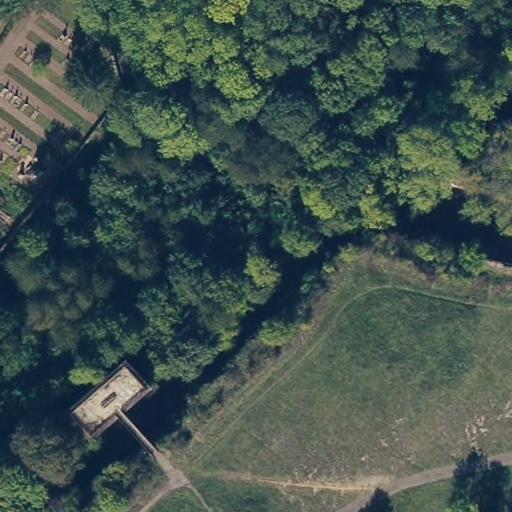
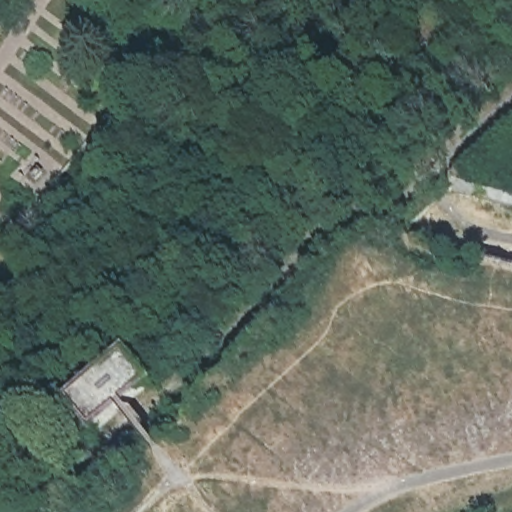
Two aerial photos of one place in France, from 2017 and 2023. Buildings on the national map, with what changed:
unchanged [(67,404),(126,354),(149,381),(90,432),(86,428),(67,404)]
unchanged [(147,431),(139,422),(167,399),(174,408),(147,431)]
unchanged [(85,434),(82,431),(86,428),(89,432),(85,434)]

